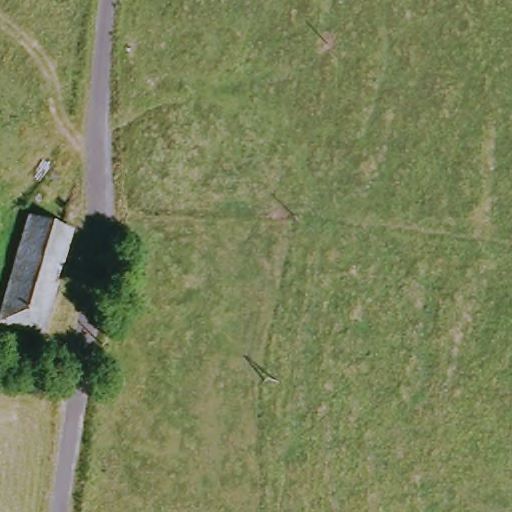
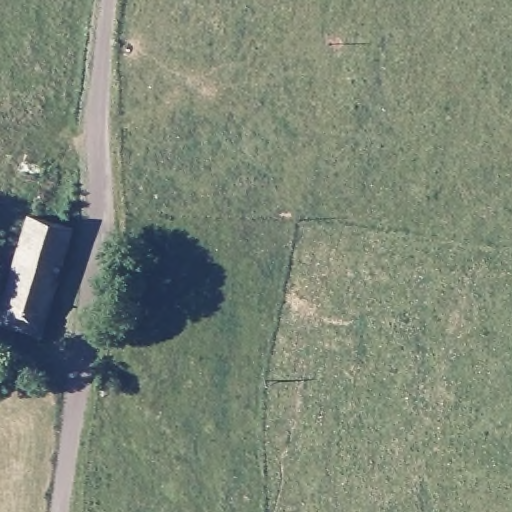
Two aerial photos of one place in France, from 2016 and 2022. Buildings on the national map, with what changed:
unchanged [(75,228),(45,336),(1,322),(33,215),(75,228)]

